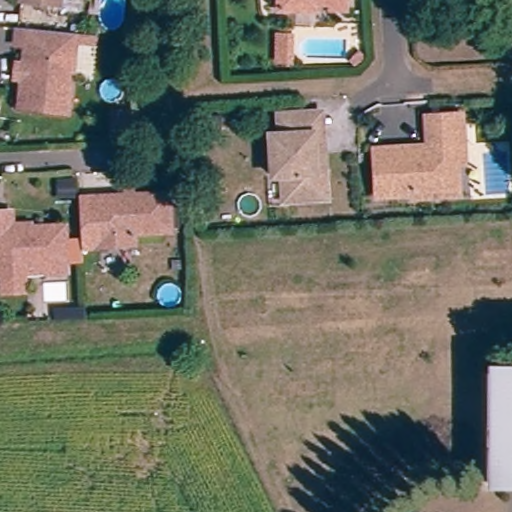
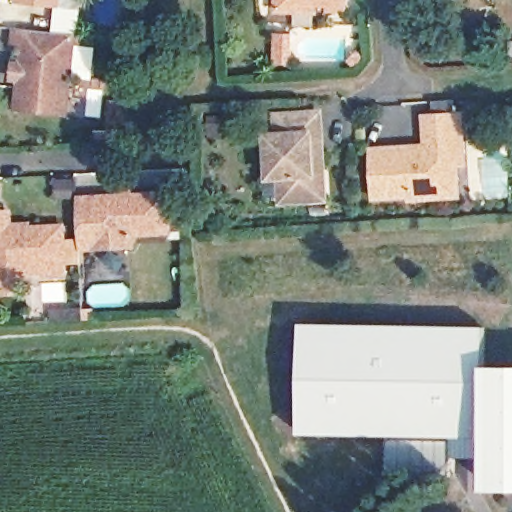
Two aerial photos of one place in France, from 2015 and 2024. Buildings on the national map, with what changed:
unchanged [(6,7),(7,0),(49,0),(47,13),(6,7)]
unchanged [(270,24),(270,0),(338,0),(338,15),(307,15),(307,25),(297,25),(270,24)]
unchanged [(59,122),(10,116),(18,61),(5,59),(8,36),(68,44),(59,122)]
unchanged [(277,192),(275,169),(265,170),(261,136),(273,134),(273,115),(304,112),(315,111),(320,166),(322,190),(277,192)]
unchanged [(446,202),(412,205),(410,199),(380,200),(378,160),(427,156),(426,133),(461,131),(466,175),(458,175),(460,202),(446,202)]
unchanged [(173,198),(176,231),(132,236),(131,247),(95,249),(93,202),(173,198)]
unchanged [(74,250),(73,235),(72,203),(93,202),(95,249),(74,250)]
unchanged [(53,228),(55,278),(0,281),(0,216),(0,232),(53,228)]
new [(475,372),(476,440),(302,435),(303,324),(488,326),(487,372),(475,372)]
unchanged [(476,480),(475,372),(512,371),(512,480),(476,480)]

